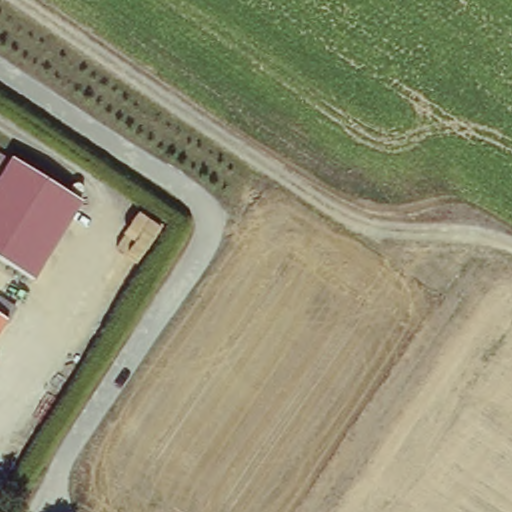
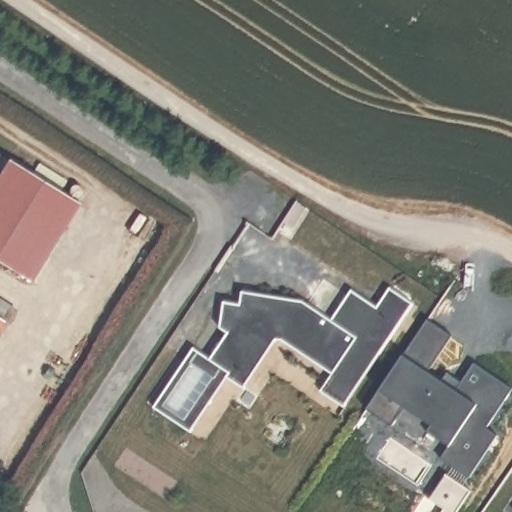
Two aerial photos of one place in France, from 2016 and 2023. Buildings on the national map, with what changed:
unchanged [(0,182),(16,159),(82,203),(34,278),(0,256),(0,182)]
new [(192,344),(208,355),(229,327),(217,325),(221,297),(237,298),(238,287),(301,295),(331,315),(352,283),(376,301),(390,283),(411,298),(343,397),(321,382),(333,365),(277,328),(243,379),(223,368),(189,424),(152,401),(192,344)]
unchanged [(0,326),(0,319),(3,321),(0,326)]
new [(411,341),(437,358),(429,372),(457,392),(476,363),(512,387),(512,391),(488,428),(500,436),(468,480),(441,460),(448,447),(427,432),(432,426),(405,409),(391,429),(367,414),(411,341)]

